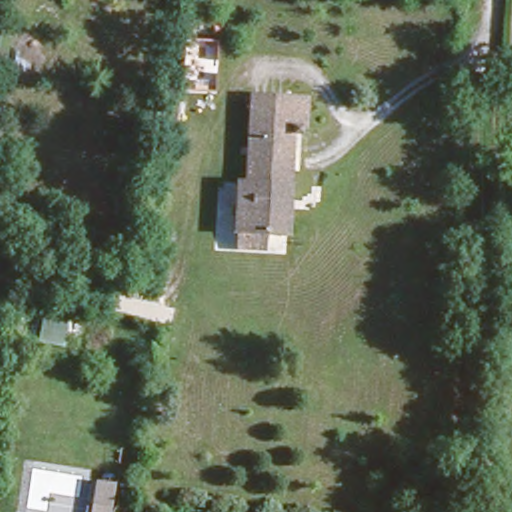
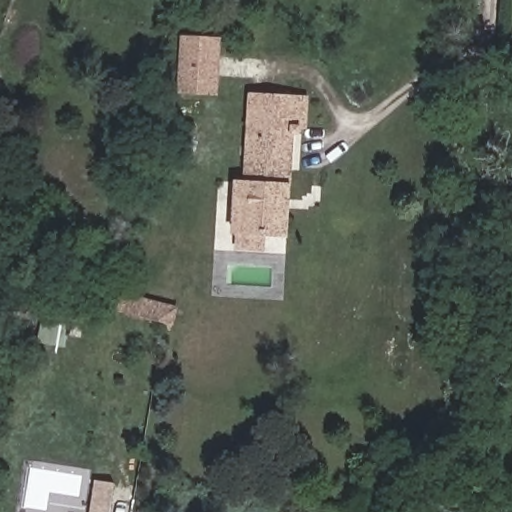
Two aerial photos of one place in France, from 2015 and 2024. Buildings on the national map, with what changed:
new [(179,36),(222,38),(218,95),(176,93),(179,36)]
unchanged [(265,230),(264,248),(235,245),(241,160),(247,88),(309,94),(308,126),(298,129),(297,232),(265,230)]
new [(10,302),(22,304),(17,347),(5,345),(10,302)]
unchanged [(40,345),(44,304),(71,308),(67,347),(40,345)]

